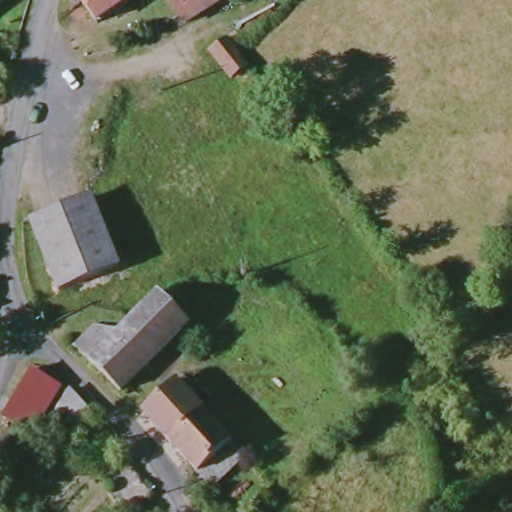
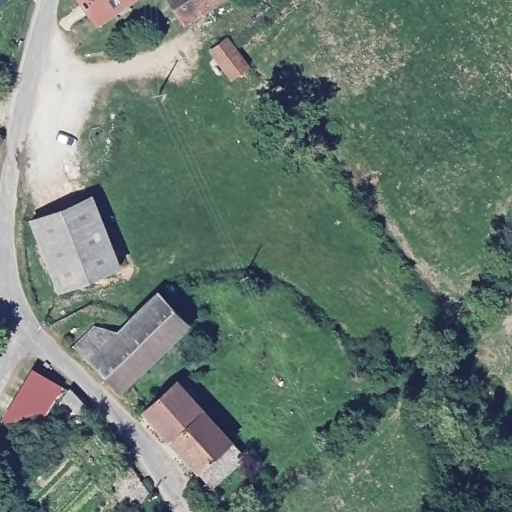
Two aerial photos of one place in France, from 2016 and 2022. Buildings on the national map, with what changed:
unchanged [(0,1),(0,0),(1,0),(0,1)]
unchanged [(87,0),(130,0),(100,23),(87,0)]
unchanged [(174,0),(220,0),(186,21),(174,0)]
unchanged [(234,45),(248,64),(232,76),(211,47),(227,37),(234,45)]
unchanged [(117,265),(57,290),(28,220),(88,195),(117,265)]
unchanged [(186,326),(119,392),(74,345),(93,326),(115,328),(129,316),(155,291),(186,326)]
unchanged [(88,416),(72,432),(52,412),(46,405),(31,433),(15,428),(12,435),(0,430),(0,419),(10,408),(29,370),(56,387),(62,390),(76,403),(88,416)]
unchanged [(205,485),(191,471),(137,413),(177,374),(182,379),(175,388),(225,444),(237,457),(205,485)]
unchanged [(130,512),(111,483),(128,462),(148,491),(130,512)]

